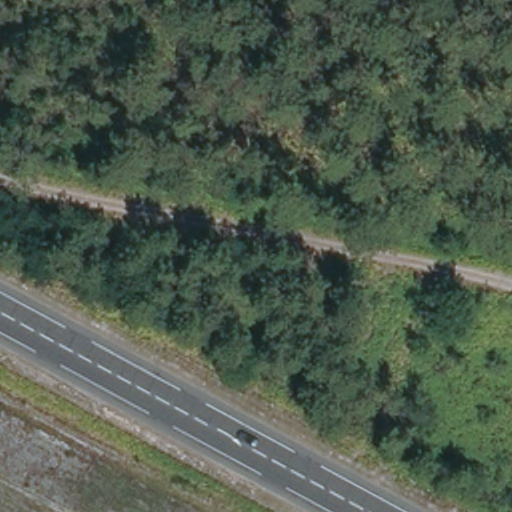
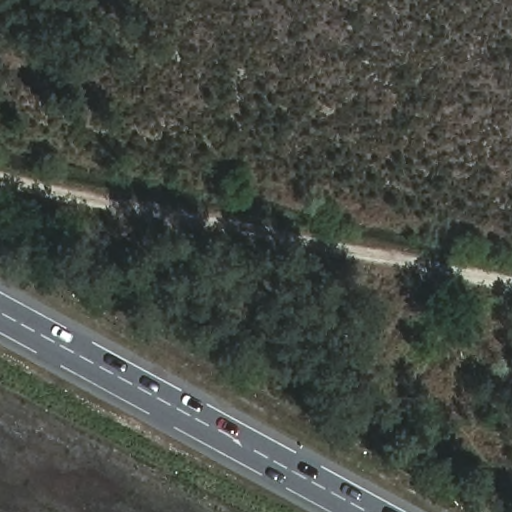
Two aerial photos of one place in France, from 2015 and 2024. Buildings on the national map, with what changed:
[]

